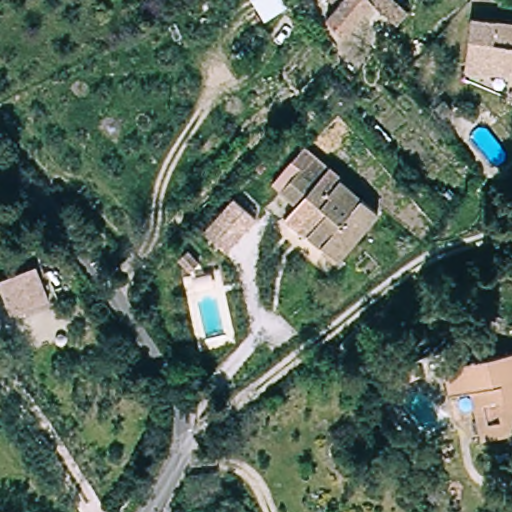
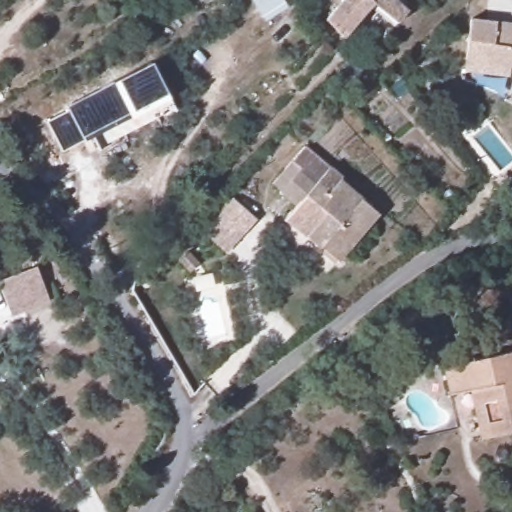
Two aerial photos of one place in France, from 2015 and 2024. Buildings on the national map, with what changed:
unchanged [(406,15),(395,4),(390,9),(379,0),(348,33),(329,15),(337,3),(333,0),(402,0),(412,8),(406,15)]
unchanged [(472,44),(497,48),(498,24),(512,26),(512,80),(468,75),(472,44)]
new [(170,97),(131,117),(62,152),(46,121),(68,108),(67,104),(113,79),(152,60),(170,97)]
unchanged [(272,188),(305,151),(380,221),(335,268),(308,243),(305,246),(284,227),(297,212),(272,188)]
unchanged [(224,251),(202,231),(232,198),(255,219),(224,251)]
unchanged [(182,265),(190,255),(202,266),(193,275),(182,265)]
unchanged [(3,312),(0,303),(0,273),(28,263),(42,298),(3,312)]
unchanged [(512,350),(512,430),(486,435),(477,386),(448,391),(443,363),(512,350)]

